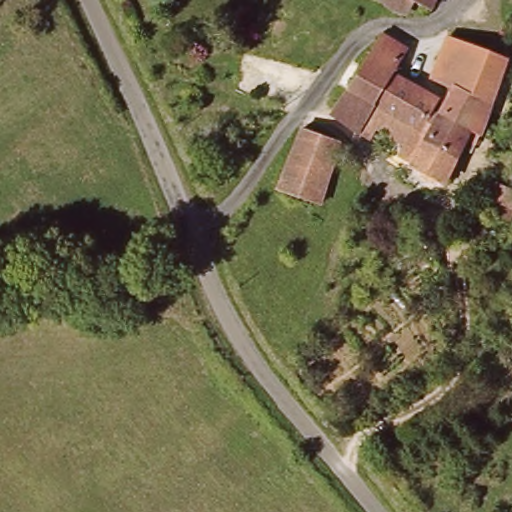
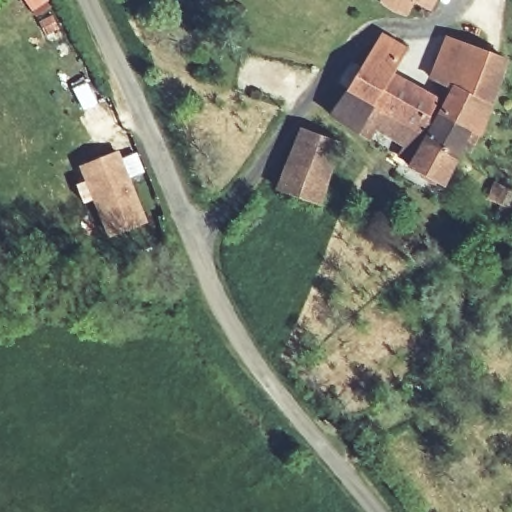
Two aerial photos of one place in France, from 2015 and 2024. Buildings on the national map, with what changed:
unchanged [(443,0),(438,11),(420,2),(413,15),(407,13),(387,4),(389,0),(413,0),(415,0),(443,0)]
unchanged [(411,50),(400,71),(394,82),(379,110),(351,96),(367,69),(371,70),(388,40),(411,50)]
unchanged [(507,60),(494,105),(436,84),(451,40),(507,60)]
unchanged [(394,82),(441,105),(427,135),(379,110),(394,82)]
unchanged [(494,105),(483,140),(472,135),(442,120),(450,101),(432,94),(436,84),(494,105)]
unchanged [(411,149),(368,127),(364,136),(338,120),(347,104),(351,96),(379,110),(427,135),(434,139),(442,120),(472,135),(453,186),(421,172),(423,167),(407,160),(411,149)]
unchanged [(344,145),(330,186),(323,205),(287,192),(293,171),(306,132),(344,145)]
new [(150,224),(110,240),(80,167),(119,150),(150,224)]
unchanged [(509,192),(512,185),(512,193),(509,192)]

